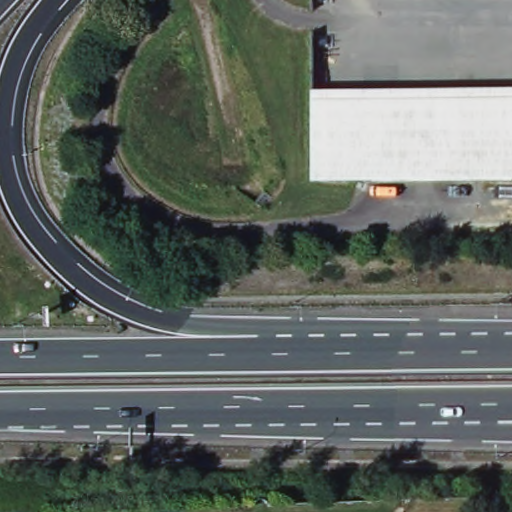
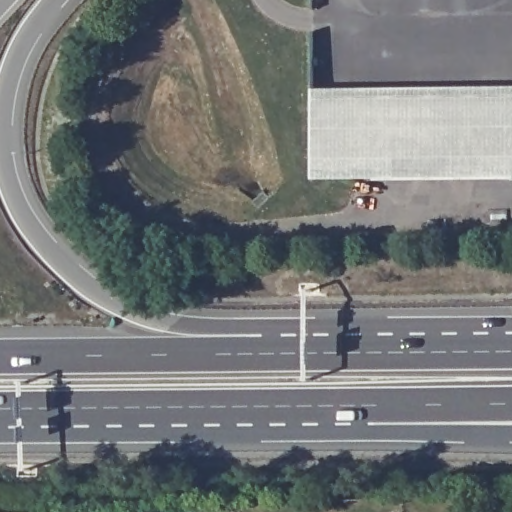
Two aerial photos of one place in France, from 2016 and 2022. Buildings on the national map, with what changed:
unchanged [(512,170),(476,165),(476,171),(436,165),(436,170),(396,165),(396,170),(356,165),(356,170),(319,164),(318,93),(512,93),(512,170)]

